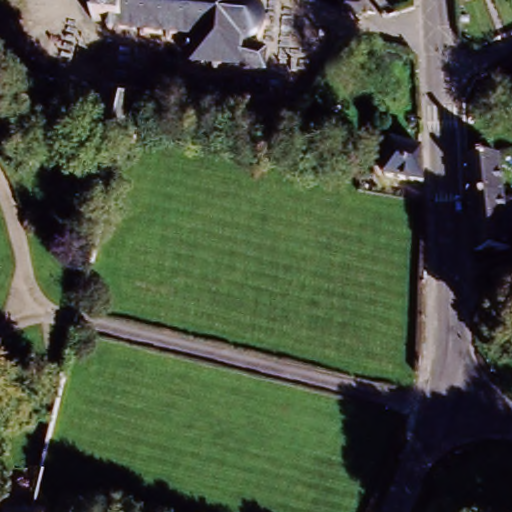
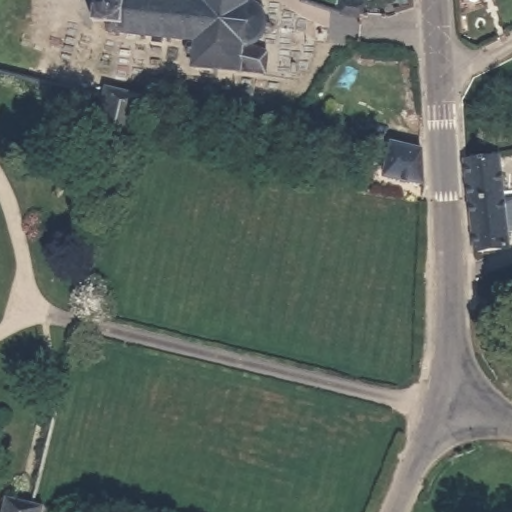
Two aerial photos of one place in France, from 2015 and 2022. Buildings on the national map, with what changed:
unchanged [(262,11),(268,20),(269,30),(265,40),(252,51),(262,53),(260,79),(200,71),(200,67),(202,49),(131,39),(132,36),(132,33),(105,28),(110,0),(241,0),(240,6),(262,11)]
unchanged [(339,0),(355,0),(355,10),(339,10),(339,0)]
unchanged [(130,143),(129,148),(119,145),(90,138),(99,100),(102,91),(140,100),(138,109),(130,143)]
unchanged [(303,130),(327,135),(324,151),(299,145),(303,130)]
unchanged [(387,179),(395,145),(420,154),(424,191),(387,179)]
unchanged [(512,251),(473,260),(468,230),(455,163),(494,158),(500,201),(512,199),(512,233),(507,233),(512,251)]
unchanged [(5,499),(35,504),(45,508),(43,512),(2,512),(5,499)]

